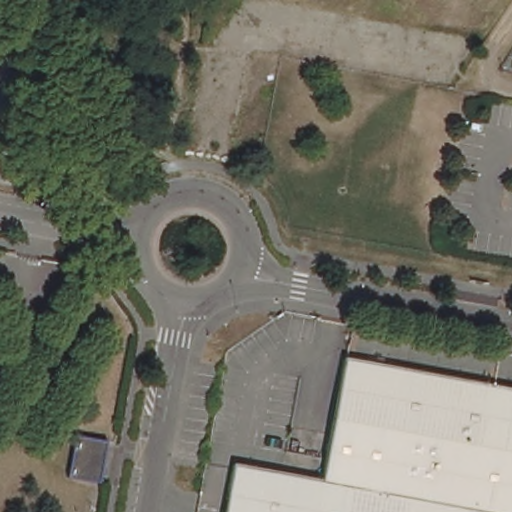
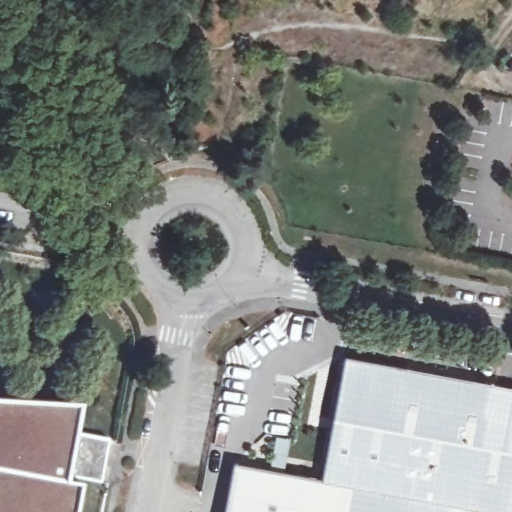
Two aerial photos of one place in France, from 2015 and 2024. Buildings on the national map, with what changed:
new [(102,326),(132,332),(118,403),(88,397),(102,326)]
unchanged [(235,462),(291,473),(304,475),(319,478),(324,479),(328,458),(332,431),(346,356),(425,371),(512,387),(512,512),(226,512),(235,462)]
new [(75,437),(107,440),(99,481),(67,475),(66,482),(82,483),(77,512),(0,512),(0,402),(80,407),(75,437)]
demolished [(110,440),(102,482),(70,477),(77,435),(110,440)]

